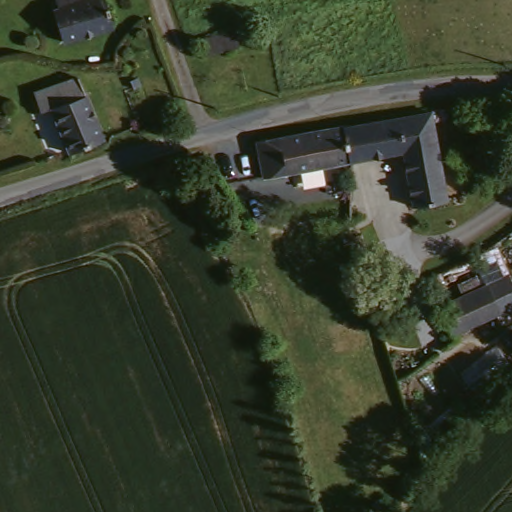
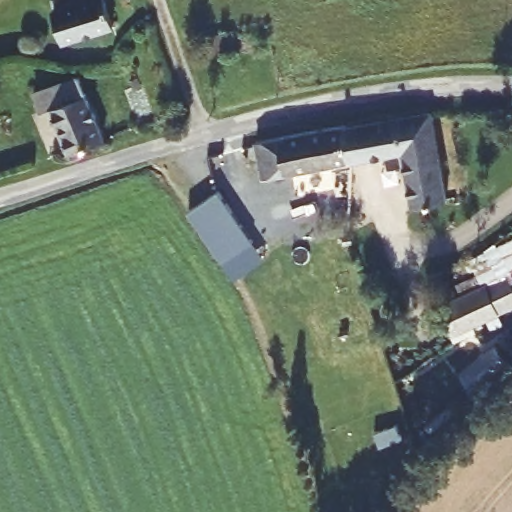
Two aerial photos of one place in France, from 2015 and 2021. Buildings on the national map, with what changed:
unchanged [(66,6),(71,5),(69,0),(118,0),(126,25),(78,40),(66,6)]
unchanged [(83,74),(108,136),(74,150),(56,105),(44,110),(37,90),(83,74)]
unchanged [(354,125),(435,111),(440,111),(458,201),(423,206),(414,152),(358,161),(354,125)]
unchanged [(358,161),(272,177),(267,140),(275,137),(354,125),(358,161)]
new [(223,260),(190,211),(220,190),(252,240),(223,260)]
unchanged [(506,313),(457,325),(450,296),(499,284),(506,313)]

